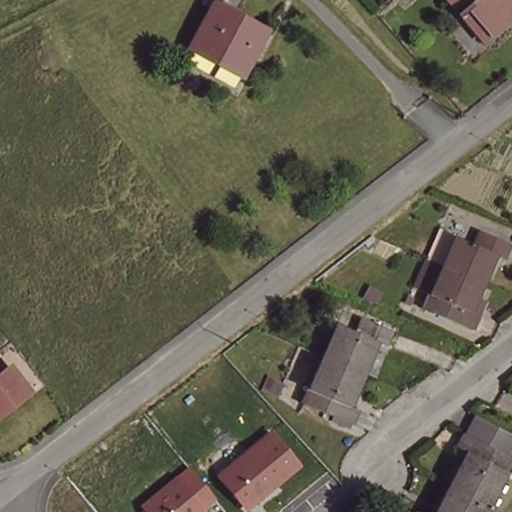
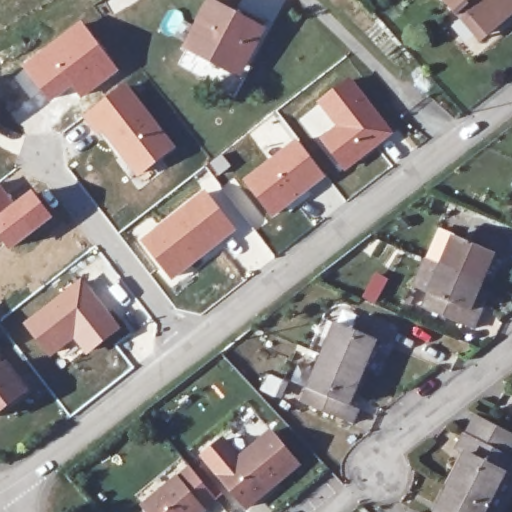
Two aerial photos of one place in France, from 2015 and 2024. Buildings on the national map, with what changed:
unchanged [(260,24),(237,69),(185,43),(207,0),(214,0),(260,24)]
unchanged [(457,14),(445,0),(512,0),(512,14),(490,34),(482,42),(457,14)]
new [(80,18),(119,70),(80,99),(72,88),(47,103),(18,65),(80,18)]
new [(395,132),(345,172),(314,139),(297,119),(315,102),(349,75),(395,132)]
new [(124,80),(177,147),(136,178),(100,135),(98,137),(81,116),(124,80)]
new [(295,137),(327,176),(272,218),(240,179),(295,137)]
new [(0,216),(0,185),(15,202),(0,216)]
new [(203,187),(237,229),(170,281),(137,238),(203,187)]
new [(33,190),(54,218),(8,252),(0,241),(0,216),(15,202),(33,190)]
unchanged [(433,263),(432,262),(447,225),(460,230),(485,238),(490,226),(512,235),(512,240),(508,248),(501,246),(478,304),(483,306),(477,319),(428,305),(436,287),(423,283),(433,263)]
new [(82,275),(122,327),(86,356),(73,340),(49,358),(21,322),(82,275)]
unchanged [(388,322),(382,337),(375,335),(351,401),(357,404),(352,421),(298,401),(331,317),(357,326),(363,312),(388,322)]
unchanged [(6,360),(25,386),(0,405),(0,361),(2,363),(6,360)]
unchanged [(455,431),(465,410),(505,429),(497,449),(455,431)]
unchanged [(247,509),(218,474),(202,458),(222,442),(236,458),(272,429),(301,466),(247,509)]
unchanged [(448,443),(453,429),(455,431),(497,449),(505,453),(498,467),(512,474),(512,475),(502,503),(498,512),(431,512),(457,448),(448,443)]
unchanged [(202,505),(205,512),(148,512),(142,505),(175,477),(189,466),(215,497),(202,505)]
unchanged [(429,512),(417,512),(418,507),(429,512)]

